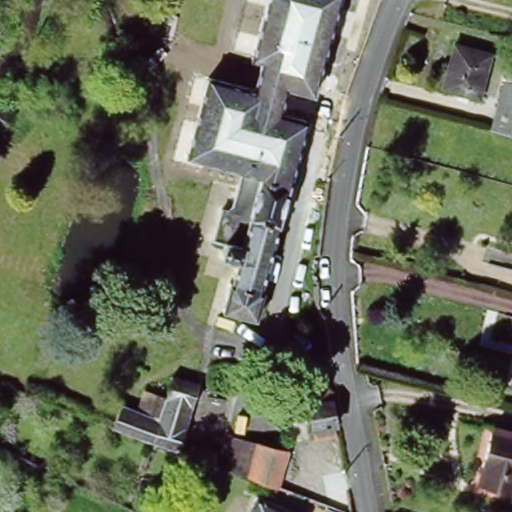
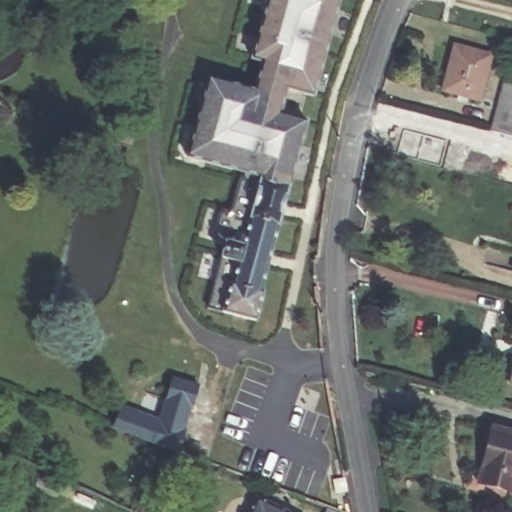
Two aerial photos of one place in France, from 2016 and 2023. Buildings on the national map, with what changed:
unchanged [(189,143),(205,84),(250,96),(259,69),(247,65),(266,0),(335,0),(333,6),(308,99),(282,93),(275,118),(302,124),(290,167),(189,143)]
unchanged [(451,43),(486,51),(479,76),(474,95),(440,86),(445,66),(451,43)]
unchanged [(512,63),(512,139),(487,132),(499,86),(506,61),(512,63)]
unchanged [(0,130),(0,102),(15,111),(0,130)]
unchanged [(255,294),(259,295),(250,324),(217,316),(225,285),(227,287),(234,264),(217,260),(220,247),(209,243),(217,213),(222,214),(230,213),(240,177),(183,162),(189,143),(290,167),(255,294)]
unchanged [(512,362),(512,391),(505,389),(512,362)]
unchanged [(140,419),(147,397),(165,403),(171,384),(197,391),(179,451),(200,459),(202,456),(218,461),(215,469),(112,429),(118,412),(140,419)]
unchanged [(339,437),(316,442),(314,430),(310,430),(307,407),(310,407),(307,389),(329,386),(339,437)]
unchanged [(479,478),(493,424),(512,428),(512,486),(505,484),(479,478)]
unchanged [(222,468),(230,438),(286,453),(278,479),(347,504),(349,512),(339,512),(261,483),(222,468)]
unchanged [(280,512),(253,512),(258,502),(280,512)]

